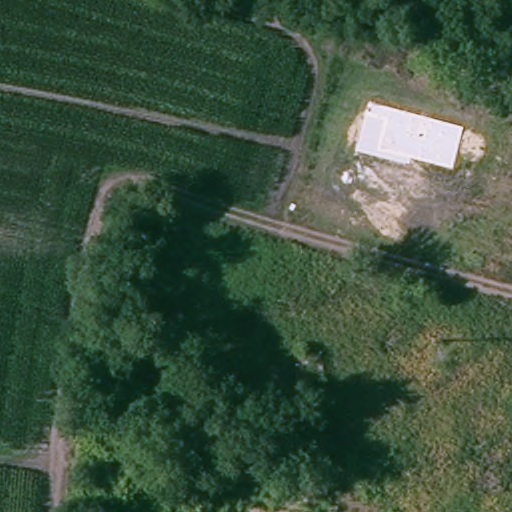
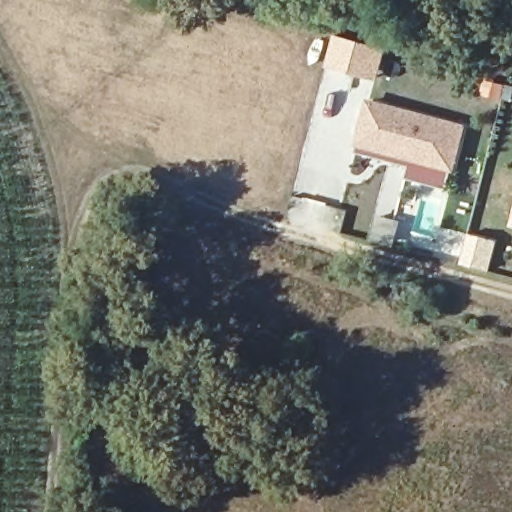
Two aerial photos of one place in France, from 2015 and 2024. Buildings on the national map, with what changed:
new [(336,34),(387,48),(377,82),(326,67),(336,34)]
new [(365,96),(466,123),(455,170),(353,145),(365,96)]
new [(512,220),(512,226),(510,226),(512,220)]

